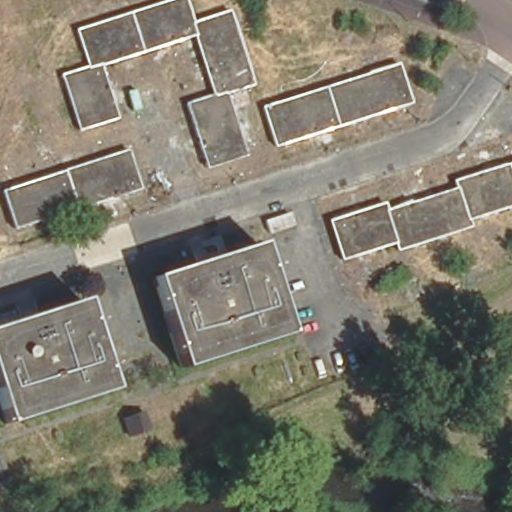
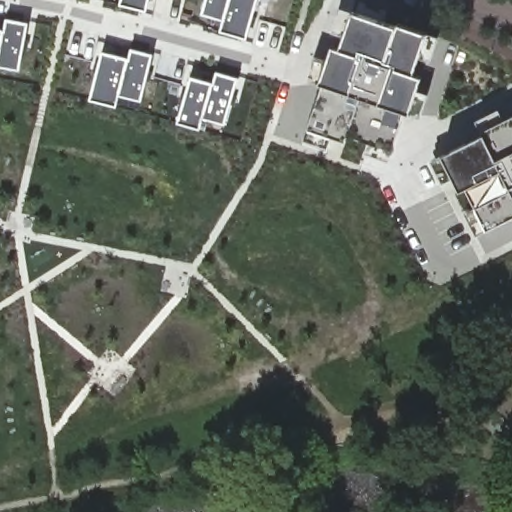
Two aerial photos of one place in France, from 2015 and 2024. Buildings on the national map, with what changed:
new [(123,2),(124,0),(151,0),(149,10),(123,2)]
demolished [(185,0),(192,24),(226,13),(250,86),(224,93),(244,156),(220,163),(202,100),(213,96),(194,35),(185,38),(175,2),(183,0),(185,0)]
new [(223,29),(225,18),(205,13),(208,0),(259,0),(247,37),(223,29)]
demolished [(185,38),(125,57),(116,19),(175,2),(185,38)]
new [(432,30),(421,69),(428,72),(415,112),(324,79),(337,42),(345,44),(358,5),(432,30)]
new [(7,29),(9,16),(31,22),(22,68),(0,65),(0,28),(7,29)]
demolished [(64,75),(88,67),(77,31),(116,19),(125,57),(98,66),(115,118),(77,129),(60,76),(64,75)]
new [(130,58),(133,48),(155,54),(143,99),(123,93),(120,104),(94,98),(104,51),(130,58)]
demolished [(393,66),(394,66),(394,67),(407,103),(269,147),(257,110),(393,66)]
new [(217,83),(219,72),(239,77),(229,123),(205,116),(203,128),(181,121),(191,76),(217,83)]
demolished [(205,168),(185,105),(202,100),(220,163),(205,168)]
new [(475,121),(499,108),(505,118),(512,114),(512,150),(500,155),(489,133),(483,136),(482,132),(475,121)]
new [(500,155),(512,150),(512,218),(492,226),(470,186),(463,189),(447,151),(489,133),(500,155)]
demolished [(86,165),(125,153),(137,190),(95,203),(86,165)]
demolished [(466,225),(392,249),(390,243),(337,258),(325,222),(379,205),(382,212),(454,189),(452,182),(512,163),(512,205),(464,219),(466,225)]
demolished [(11,230),(0,195),(0,193),(86,165),(95,203),(11,230)]
demolished [(243,247),(256,243),(283,330),(267,335),(243,247)]
demolished [(202,355),(179,267),(243,247),(267,335),(202,355)]
demolished [(175,364),(149,276),(179,267),(202,355),(175,364)]
demolished [(0,374),(0,330),(82,304),(109,390),(10,422),(0,374)]
demolished [(2,424),(0,417),(0,374),(10,422),(2,424)]
demolished [(134,412),(140,430),(122,435),(116,417),(134,412)]

